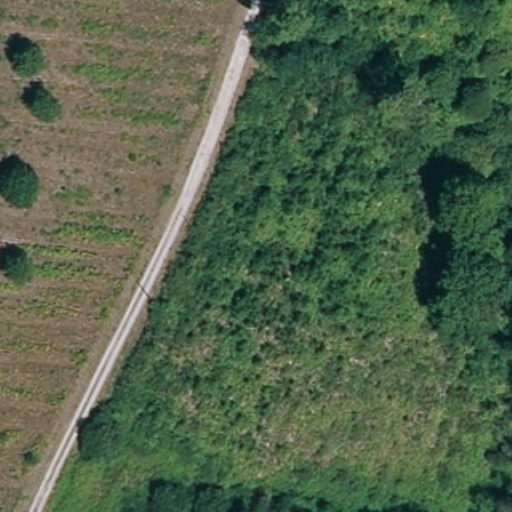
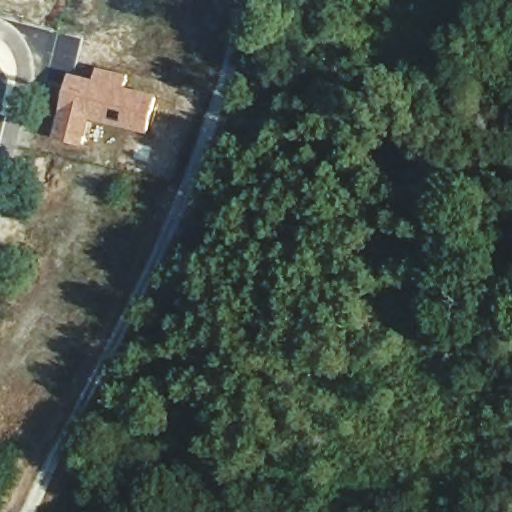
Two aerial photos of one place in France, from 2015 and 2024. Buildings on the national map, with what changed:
new [(71,73),(94,79),(99,66),(133,75),(130,87),(159,95),(149,133),(92,121),(83,149),(54,140),(71,73)]

